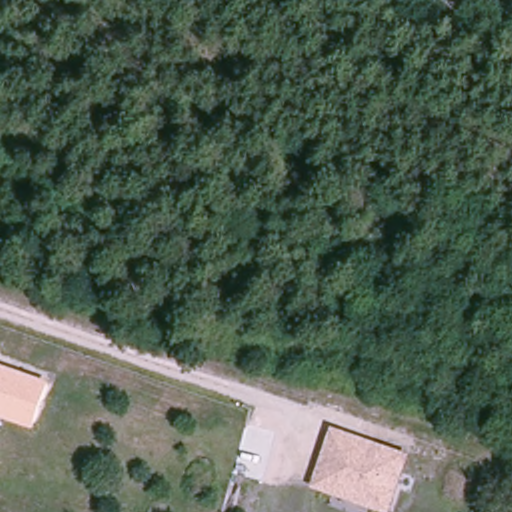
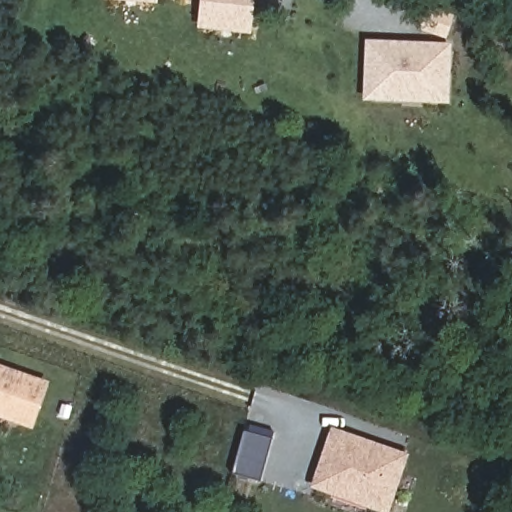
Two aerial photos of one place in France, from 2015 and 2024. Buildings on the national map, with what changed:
new [(257,0),(256,17),(256,29),(207,26),(208,14),(209,0),(257,0)]
new [(372,42),(402,42),(402,47),(415,47),(415,42),(452,44),(451,82),(407,81),(407,97),(370,96),(372,42)]
unchanged [(0,413),(0,365),(49,383),(35,426),(0,413)]
unchanged [(389,511),(311,487),(329,425),(410,454),(389,511)]
new [(247,430),(276,438),(265,481),(236,473),(247,430)]

